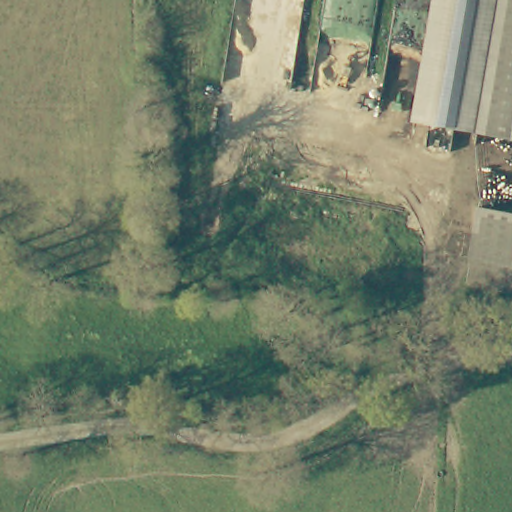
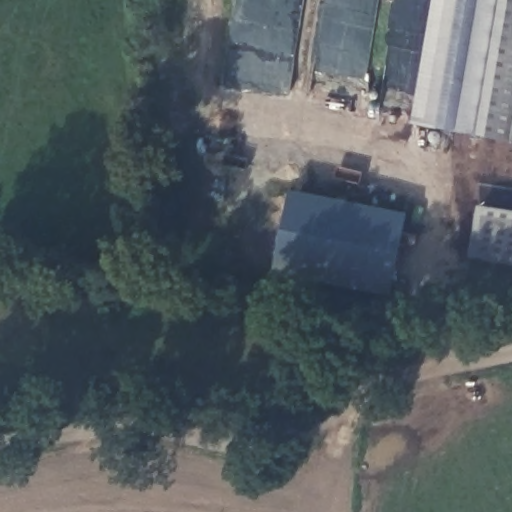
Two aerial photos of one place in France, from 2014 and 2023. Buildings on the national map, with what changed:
unchanged [(418,125),(436,0),(512,0),(512,138),(418,125)]
new [(406,215),(392,297),(274,273),(290,192),(406,215)]
unchanged [(471,286),(480,211),(512,214),(512,290),(471,286)]

